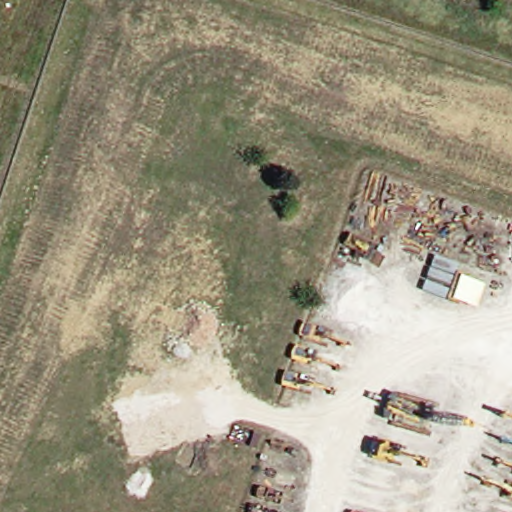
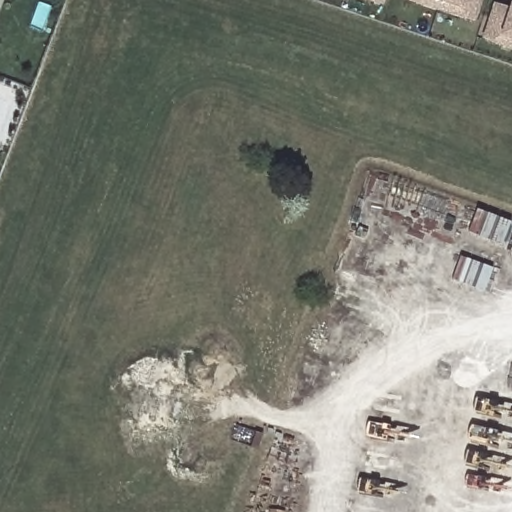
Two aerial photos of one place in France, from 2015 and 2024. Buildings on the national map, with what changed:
new [(368,0),(387,0),(385,6),(368,0)]
new [(409,0),(484,0),(477,22),(459,17),(437,9),(418,3),(409,0)]
new [(483,39),(492,10),(494,2),(512,8),(512,49),(501,45),(483,39)]

